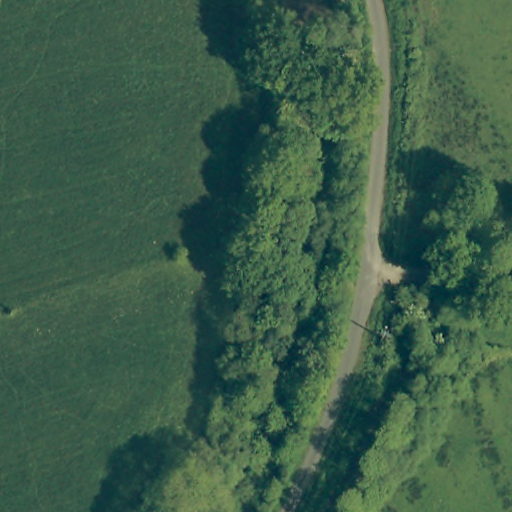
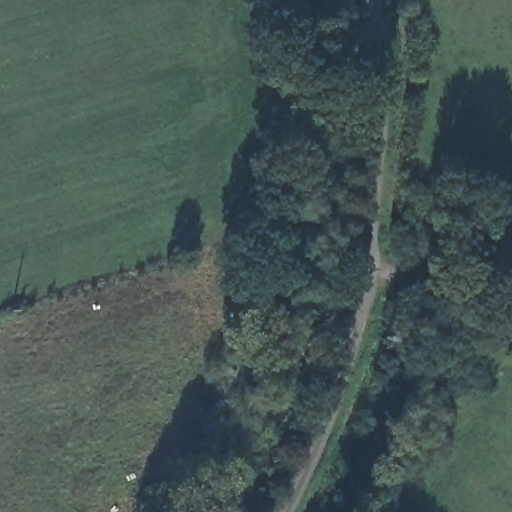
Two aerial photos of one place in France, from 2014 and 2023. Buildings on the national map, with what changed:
[]

